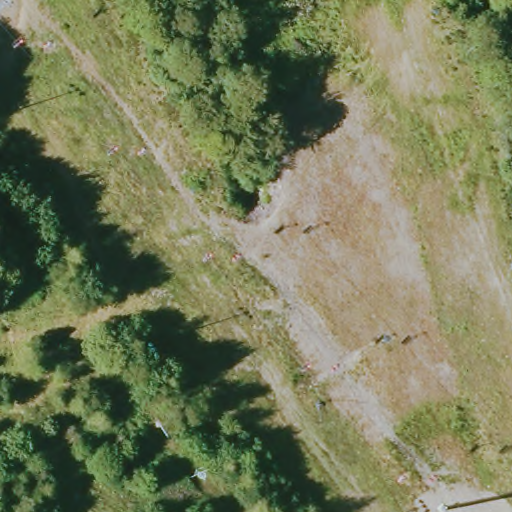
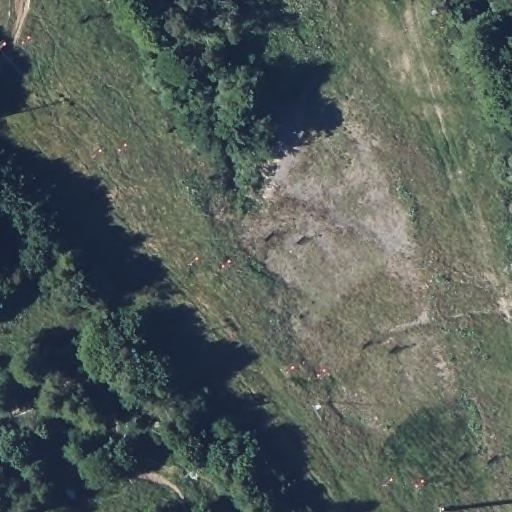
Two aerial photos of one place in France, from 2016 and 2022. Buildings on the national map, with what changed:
[]

